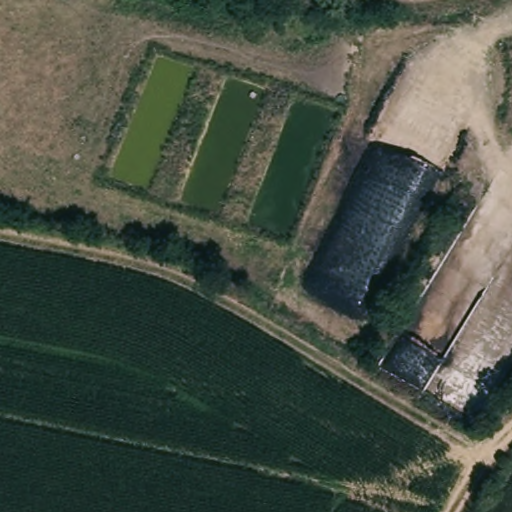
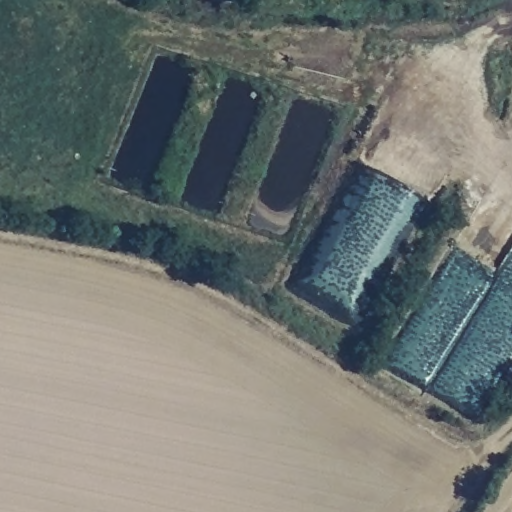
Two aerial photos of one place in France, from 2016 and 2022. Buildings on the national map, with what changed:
[]

